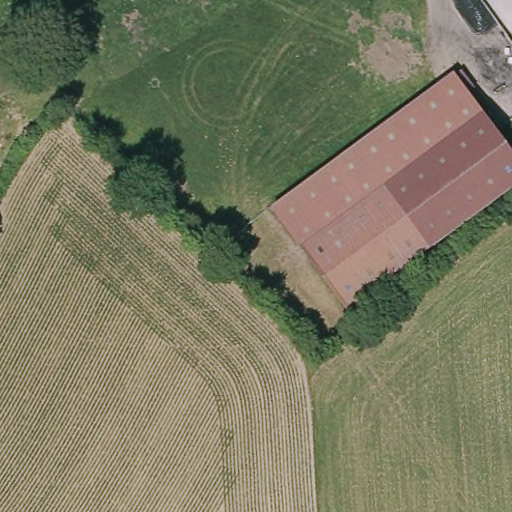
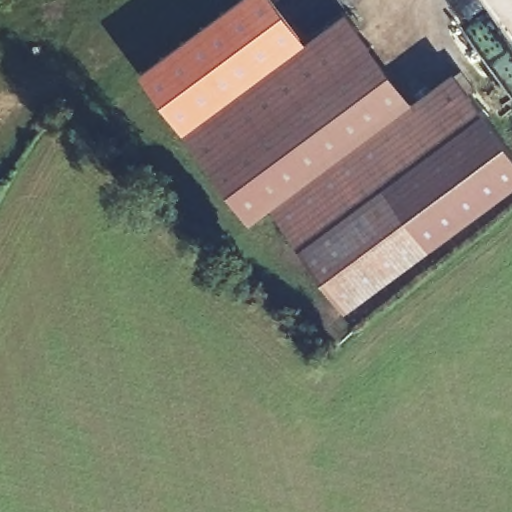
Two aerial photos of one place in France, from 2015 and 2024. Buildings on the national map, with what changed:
new [(308,42),(184,135),(141,73),(240,0),(276,0),(308,42)]
new [(273,202),(277,207),(253,224),(184,135),(346,13),(415,106),(273,202)]
unchanged [(512,151),(512,188),(341,303),(273,202),(461,75),(512,151)]

